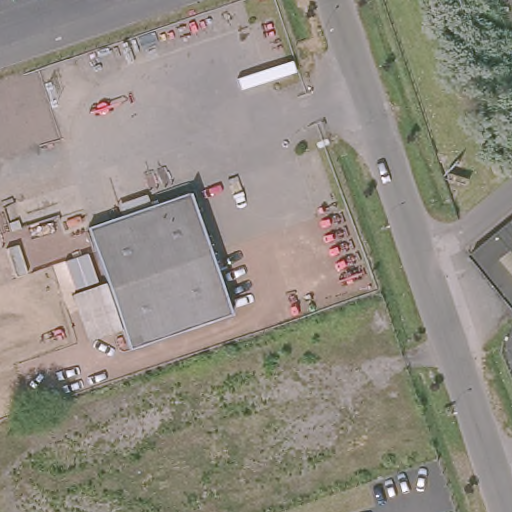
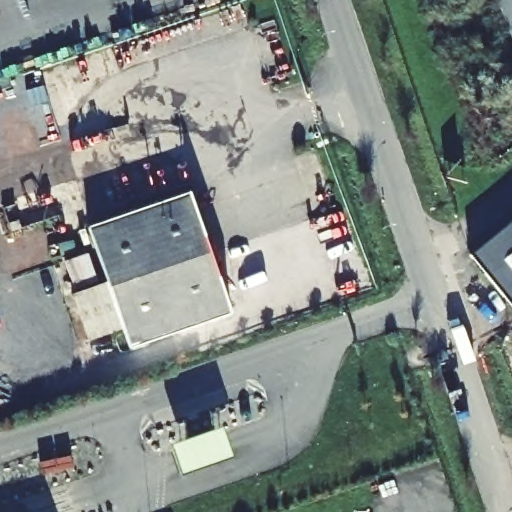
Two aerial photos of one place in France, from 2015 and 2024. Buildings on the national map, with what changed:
unchanged [(88,231),(189,199),(213,266),(112,301),(88,231)]
unchanged [(512,219),(512,308),(469,255),(512,219)]
unchanged [(231,317),(130,351),(112,301),(213,266),(231,317)]
new [(221,423),(233,454),(181,473),(169,442),(221,423)]

